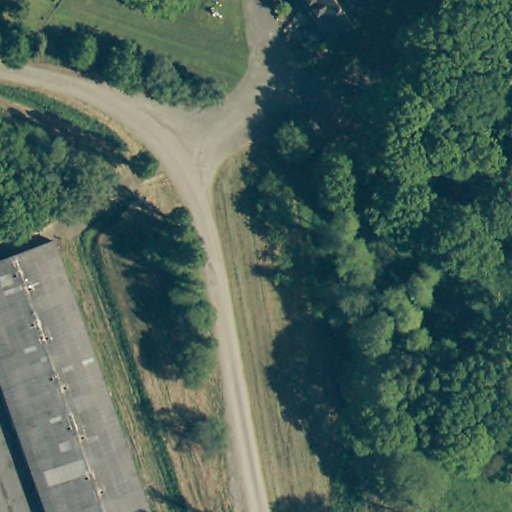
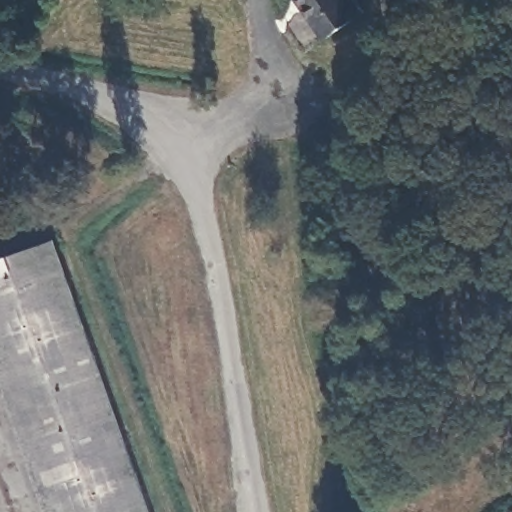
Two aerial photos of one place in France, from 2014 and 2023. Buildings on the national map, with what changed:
unchanged [(325,37),(299,0),(359,0),(366,11),(325,37)]
unchanged [(154,512),(57,512),(42,470),(0,353),(0,261),(57,241),(114,401),(154,512)]

